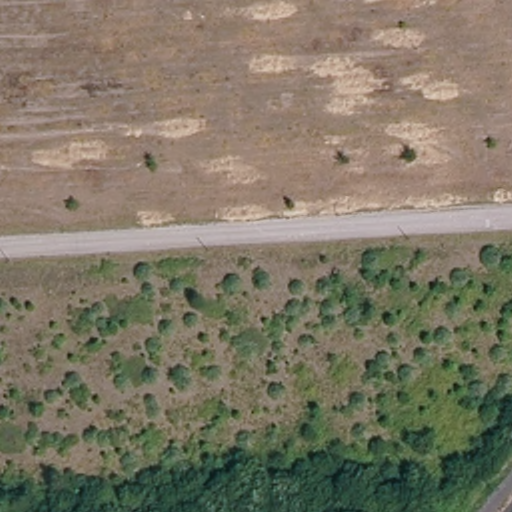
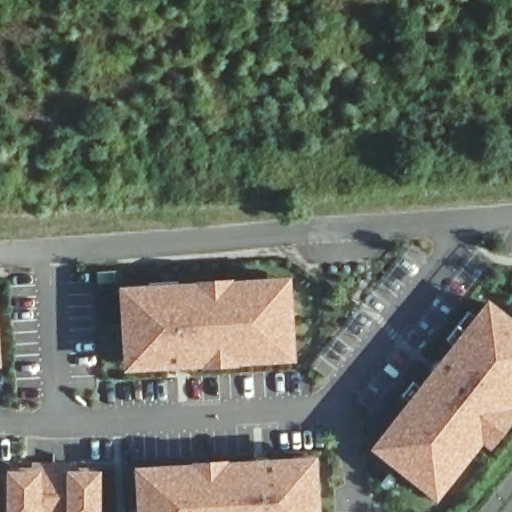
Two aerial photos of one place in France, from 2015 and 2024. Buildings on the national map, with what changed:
new [(120,284),(193,280),(193,277),(235,274),(235,277),(291,274),(296,358),(239,361),(239,364),(199,368),(199,364),(124,369),(120,284)]
new [(512,406),(511,407),(512,408),(512,421),(491,447),(482,442),(438,499),(371,445),(488,295),(512,316),(512,406)]
new [(2,364),(0,364),(0,323),(2,364)]
new [(190,461),(190,458),(231,457),(231,459),(318,454),(321,512),(139,512),(136,465),(190,461)]
new [(99,512),(8,512),(8,469),(41,469),(42,461),(69,461),(67,468),(101,467),(99,512)]

